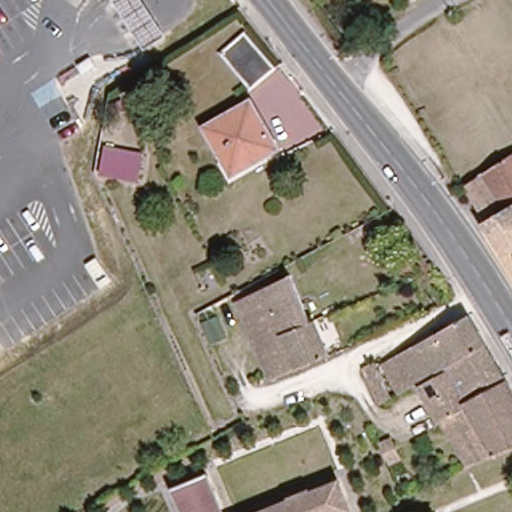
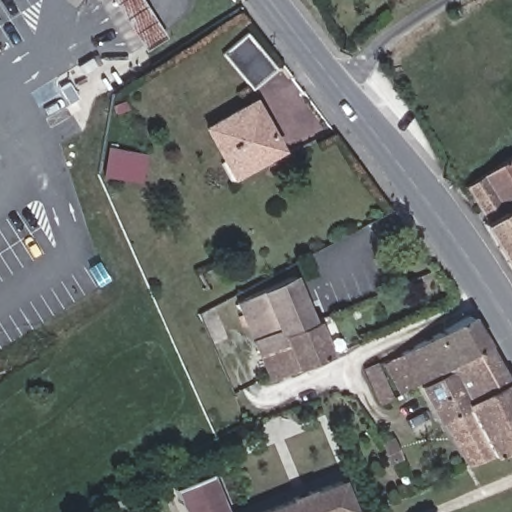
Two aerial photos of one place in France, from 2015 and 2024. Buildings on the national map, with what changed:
unchanged [(163,35),(165,37),(145,50),(144,49),(113,0),(141,0),(163,35)]
unchanged [(217,47),(240,25),(272,58),(248,81),(217,47)]
unchanged [(232,176),(205,127),(252,101),(280,149),(232,176)]
unchanged [(147,151),(142,184),(100,178),(107,144),(147,151)]
unchanged [(485,222),(488,220),(466,184),(512,155),(512,267),(485,222)]
unchanged [(237,300),(289,277),(310,323),(282,336),(285,344),(261,355),(237,300)]
unchanged [(388,361),(401,353),(469,317),(485,345),(485,346),(448,367),(417,384),(405,391),(388,361)]
unchanged [(272,380),(261,355),(285,344),(282,336),(310,323),(314,322),(330,355),(272,380)]
unchanged [(512,393),(512,449),(492,458),(471,467),(444,421),(441,422),(420,388),(451,372),(448,367),(485,346),(512,393)]
unchanged [(382,380),(388,393),(377,397),(371,385),(382,380)]
unchanged [(390,463),(382,445),(392,441),(400,459),(390,463)]
unchanged [(211,473),(228,512),(187,512),(176,487),(211,473)]
unchanged [(297,497),(315,491),(316,494),(345,482),(355,511),(352,512),(268,512),(297,500),(297,497)]

